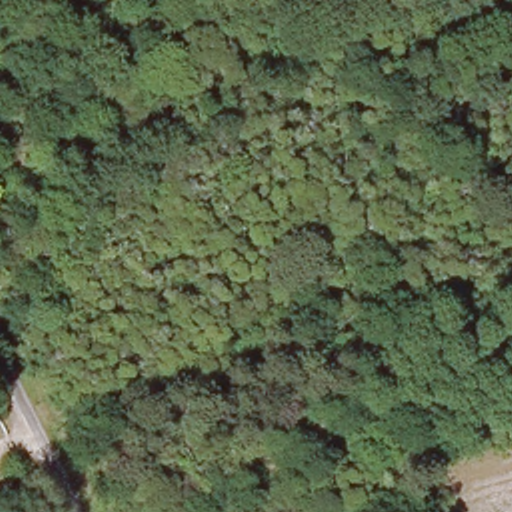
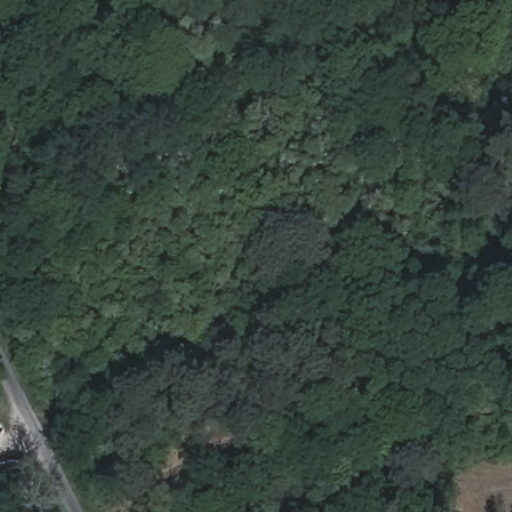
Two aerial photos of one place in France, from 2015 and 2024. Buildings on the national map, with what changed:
[]

